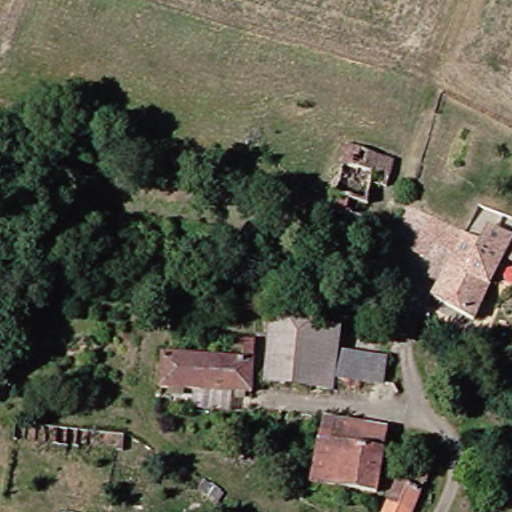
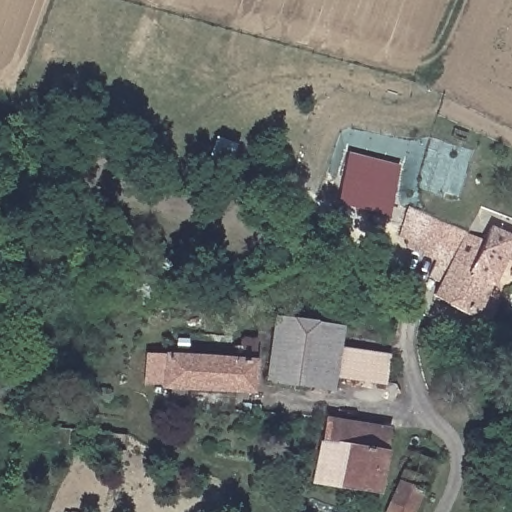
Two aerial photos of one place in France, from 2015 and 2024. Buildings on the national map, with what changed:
demolished [(395,162),(390,190),(372,187),(365,219),(331,212),(348,150),(395,162)]
new [(347,152),(400,165),(386,217),(335,204),(347,152)]
unchanged [(476,319),(432,298),(449,265),(421,252),(430,237),(440,220),(480,242),(485,232),(512,245),(512,246),(494,284),(476,319)]
unchanged [(490,221),(512,233),(512,245),(485,232),(490,221)]
unchanged [(512,290),(510,293),(494,284),(512,246),(512,290)]
unchanged [(230,298),(228,288),(242,284),(245,294),(230,298)]
unchanged [(266,384),(271,320),(305,324),(305,314),(320,314),(319,324),(342,327),(340,349),(391,354),(389,384),(336,378),(335,392),(320,390),(306,389),(266,384)]
unchanged [(164,387),(167,351),(245,356),(246,338),(258,339),(257,357),(255,393),(164,387)]
unchanged [(318,484),(328,419),(355,424),(346,489),(318,484)]
unchanged [(393,430),(383,494),(346,489),(355,424),(393,430)]
unchanged [(392,489),(411,436),(438,445),(416,509),(397,502),(389,499),(392,489)]

